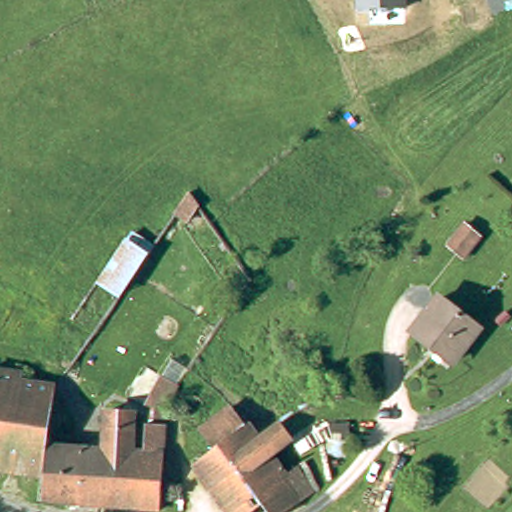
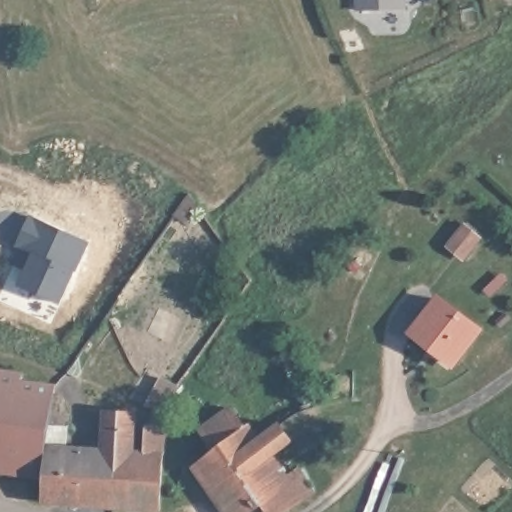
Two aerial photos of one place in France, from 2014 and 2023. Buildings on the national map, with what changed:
unchanged [(409,9),(356,10),(356,0),(408,0),(409,9)]
unchanged [(181,207),(191,193),(198,204),(189,215),(181,207)]
new [(18,248),(17,245),(30,216),(88,241),(49,324),(0,304),(0,290),(18,248)]
new [(463,223),(482,239),(463,261),(444,246),(463,223)]
unchanged [(414,336),(440,302),(481,333),(454,367),(414,336)]
unchanged [(18,377),(18,387),(52,390),(46,449),(43,481),(33,480),(0,477),(0,376),(18,377)]
unchanged [(171,414),(152,412),(154,391),(173,394),(171,414)]
unchanged [(108,417),(135,420),(131,458),(146,459),(149,433),(161,434),(162,422),(170,424),(169,435),(168,439),(161,512),(87,512),(41,508),(43,481),(46,449),(102,455),(108,417)]
unchanged [(192,469),(214,456),(203,437),(238,417),(248,434),(253,431),(262,443),(287,429),(297,446),(272,461),(286,486),(305,475),(320,501),(302,511),(301,512),(276,512),(274,509),(269,512),(222,512),(213,500),(192,469)]

